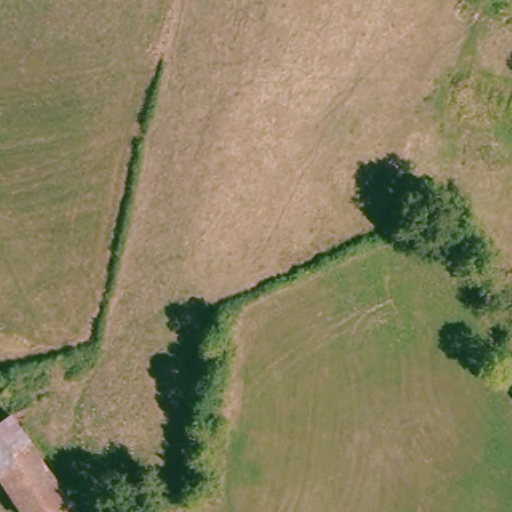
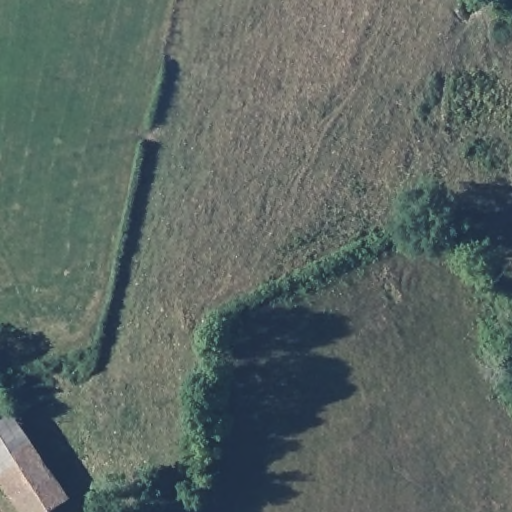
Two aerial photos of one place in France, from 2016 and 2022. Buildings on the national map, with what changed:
unchanged [(28,512),(0,469),(0,429),(18,417),(73,501),(57,512),(28,512)]

